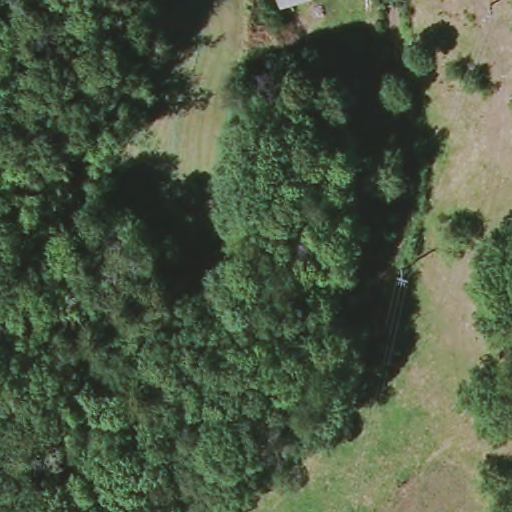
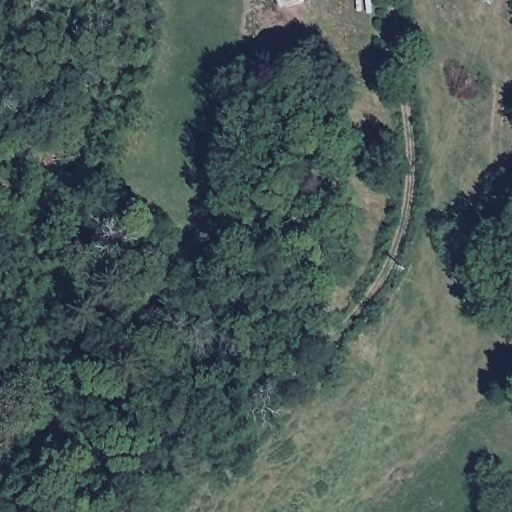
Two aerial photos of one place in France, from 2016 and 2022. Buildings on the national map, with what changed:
unchanged [(277,0),(287,0),(278,3),(277,0)]

